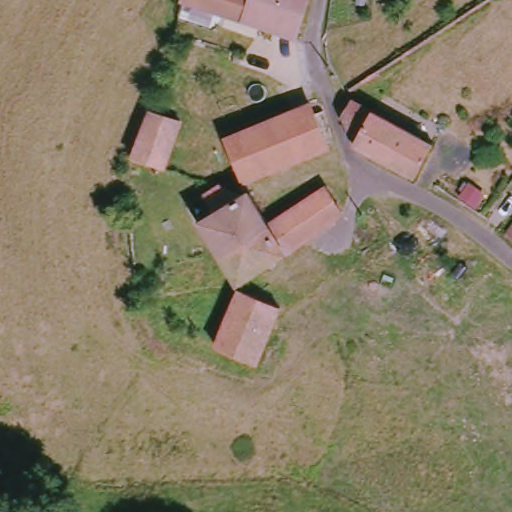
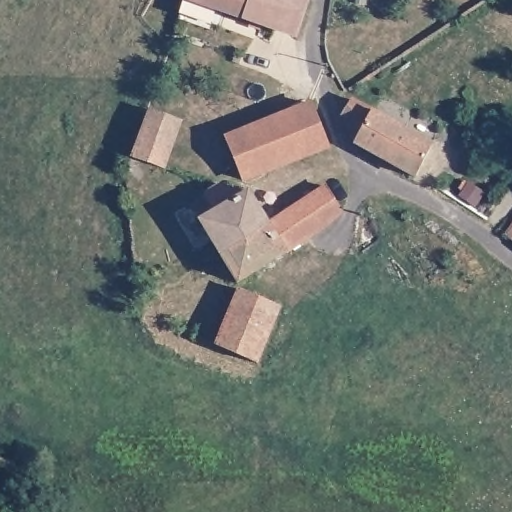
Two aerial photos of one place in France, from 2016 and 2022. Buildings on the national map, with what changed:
unchanged [(246,17),(185,0),(307,0),(295,34),(246,17)]
unchanged [(385,161),(350,142),(338,115),(349,99),(402,129),(385,161)]
unchanged [(227,137),(310,106),(312,115),(322,112),(335,147),(326,150),(243,178),(227,137)]
unchanged [(180,121),(160,171),(134,157),(155,110),(180,121)]
unchanged [(385,161),(402,129),(427,145),(410,175),(385,161)]
unchanged [(203,222),(218,211),(210,197),(217,189),(225,186),(235,200),(240,195),(267,220),(222,255),(203,222)]
unchanged [(339,212),(240,284),(222,255),(267,220),(326,190),(339,212)]
unchanged [(512,233),(512,238),(509,236),(512,233)]
unchanged [(261,364),(219,344),(238,290),(279,305),(261,364)]

